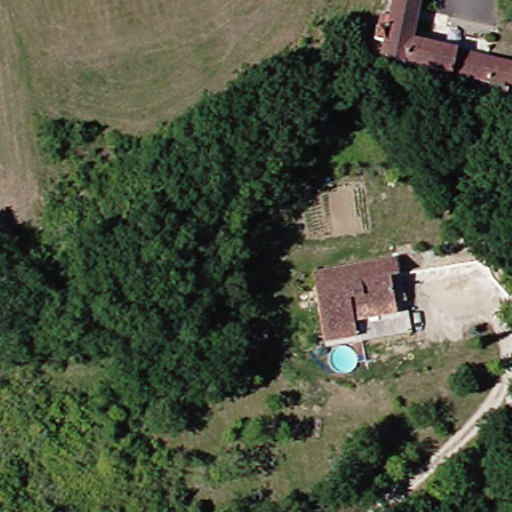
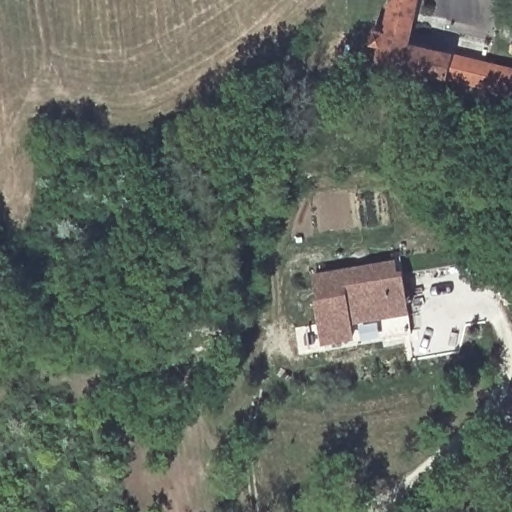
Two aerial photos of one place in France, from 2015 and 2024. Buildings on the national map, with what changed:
unchanged [(493,58),(486,93),(454,85),(456,77),(382,60),(385,45),(379,44),(382,24),(391,25),(395,0),(422,0),(414,38),(493,58)]
unchanged [(493,58),(512,63),(512,99),(486,93),(493,58)]
unchanged [(315,270),(396,255),(403,299),(393,300),(395,312),(350,320),(352,335),(327,340),(315,270)]

